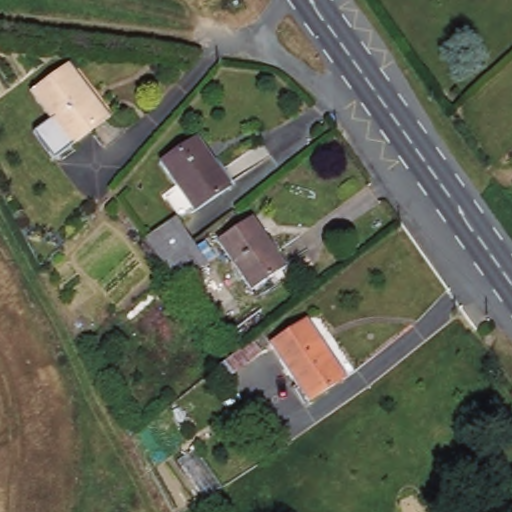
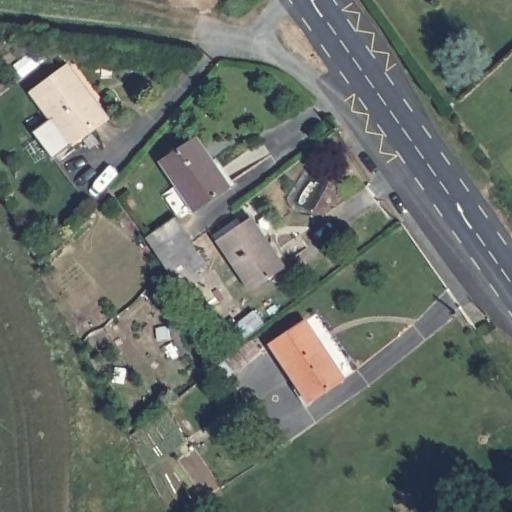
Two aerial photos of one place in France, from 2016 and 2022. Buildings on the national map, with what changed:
unchanged [(109,119),(72,147),(34,94),(69,69),(109,119)]
unchanged [(230,182),(194,206),(164,160),(198,137),(230,182)]
unchanged [(147,236),(176,217),(193,243),(196,248),(205,262),(180,278),(174,282),(167,271),(147,236)]
unchanged [(257,295),(226,247),(257,226),(289,275),(257,295)]
unchanged [(344,378),(307,400),(272,341),(308,321),(344,378)]

